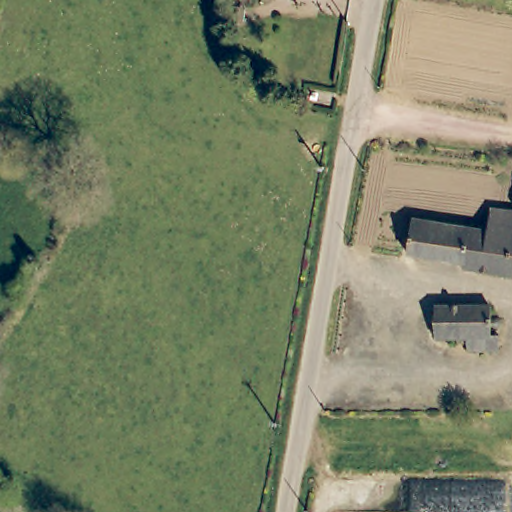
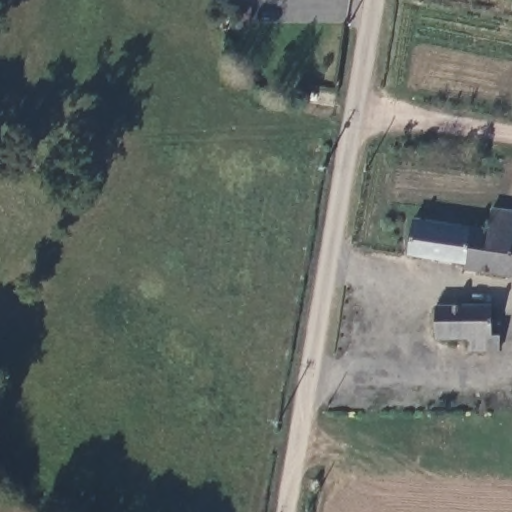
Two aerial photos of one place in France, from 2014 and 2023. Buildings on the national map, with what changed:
unchanged [(492,214),(512,216),(512,279),(465,274),(466,265),(412,259),(415,224),(491,232),(492,214)]
unchanged [(489,314),(492,314),(495,315),(497,319),(498,322),(496,325),(493,328),(490,329),(488,328),(488,336),(495,335),(495,352),(465,352),(465,338),(432,338),(430,307),(489,306),(489,314)]

